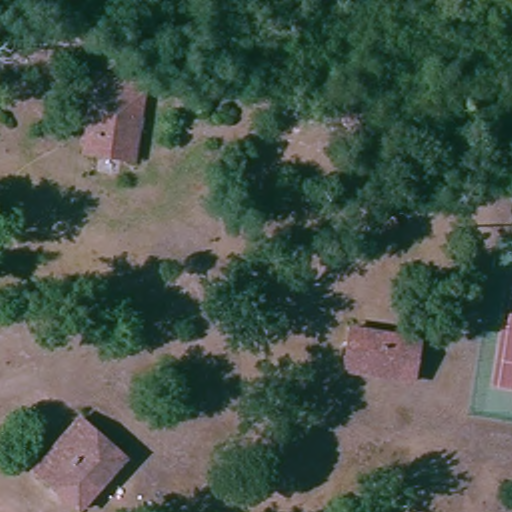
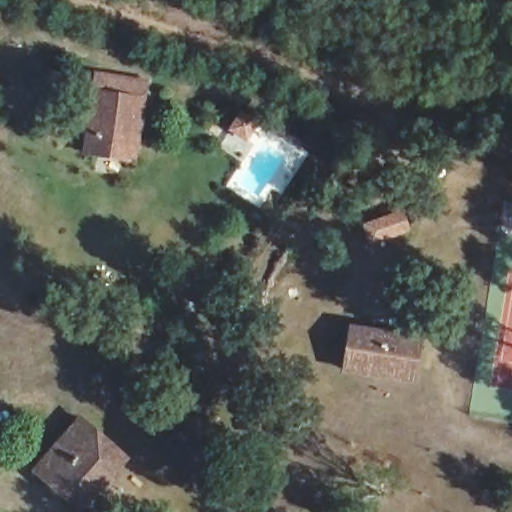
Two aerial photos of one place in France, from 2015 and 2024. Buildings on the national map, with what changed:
unchanged [(77,154),(90,85),(92,72),(115,76),(143,80),(141,96),(128,164),(77,154)]
unchanged [(415,341),(407,382),(340,369),(346,329),(415,341)]
unchanged [(34,470),(82,420),(128,460),(77,511),(34,470)]

